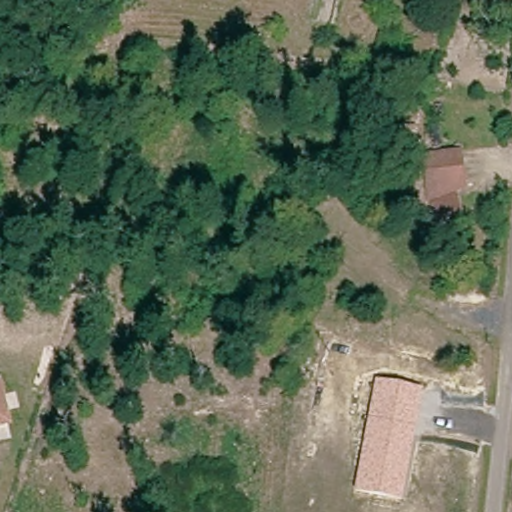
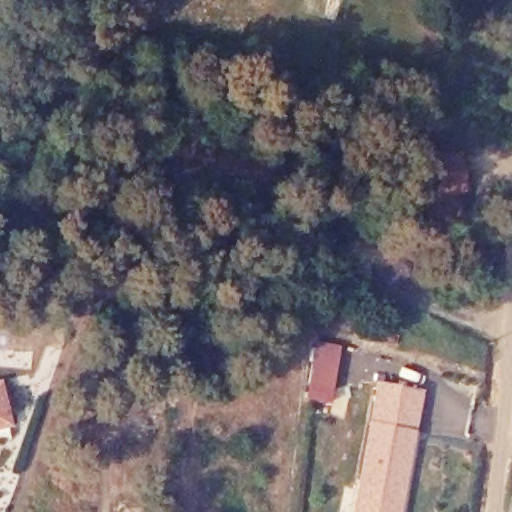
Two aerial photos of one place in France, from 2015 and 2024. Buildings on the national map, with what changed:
unchanged [(445,160),(448,188),(419,208),(415,162),(445,160)]
unchanged [(440,206),(456,231),(440,241),(424,216),(440,206)]
new [(307,385),(314,342),(339,346),(331,390),(307,385)]
unchanged [(423,388),(415,430),(402,498),(355,490),(367,421),(375,379),(423,388)]
unchanged [(0,430),(0,381),(12,426),(0,430)]
new [(400,512),(351,512),(355,490),(402,498),(400,512)]

